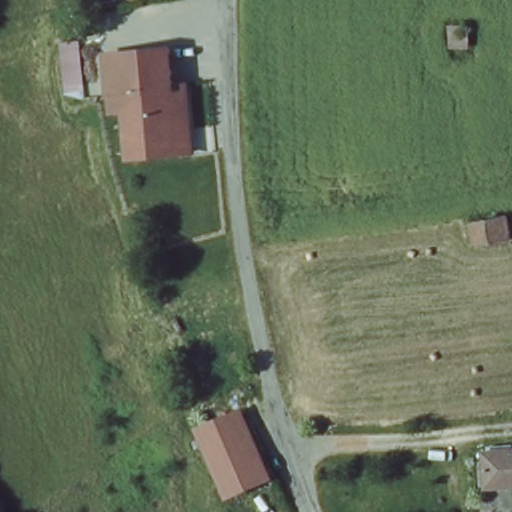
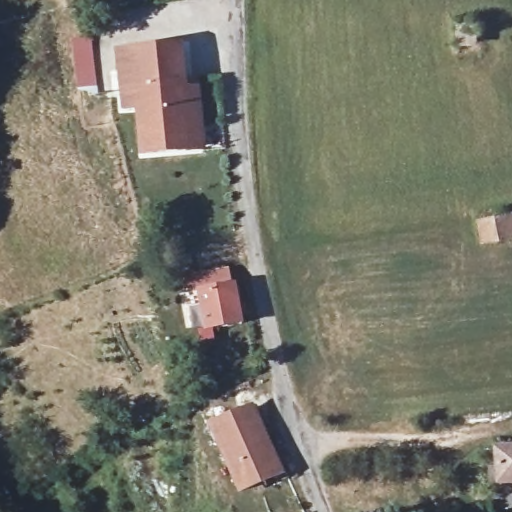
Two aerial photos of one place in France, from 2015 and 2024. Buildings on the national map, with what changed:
unchanged [(475,23),(475,44),(453,44),(453,23),(475,23)]
unchanged [(139,154),(133,100),(119,101),(117,86),(114,50),(175,44),(179,84),(191,83),(194,106),(196,128),(198,149),(185,150),(139,154)]
unchanged [(512,240),(482,244),(478,220),(512,215),(512,240)]
new [(244,325),(205,333),(196,292),(194,276),(227,269),(231,285),(236,284),(244,325)]
unchanged [(252,406),(259,423),(254,425),(275,474),(240,490),(212,425),(252,406)]
unchanged [(512,485),(497,486),(495,448),(512,447),(512,485)]
unchanged [(497,486),(512,486),(512,503),(498,504),(497,486)]

